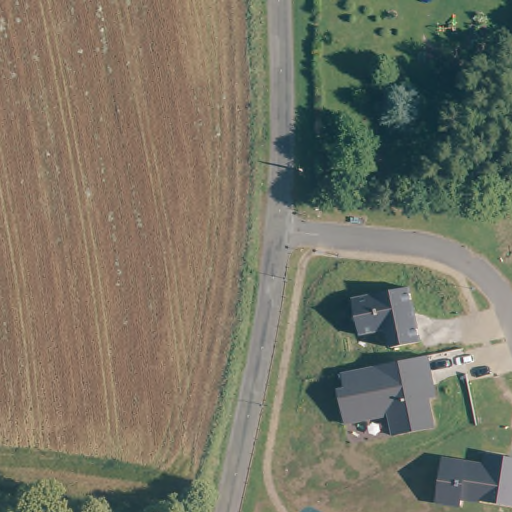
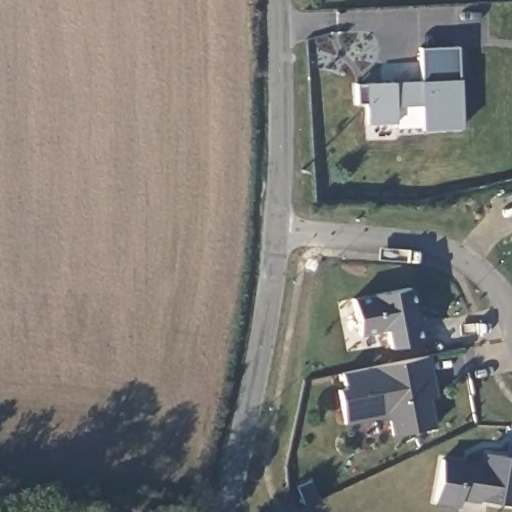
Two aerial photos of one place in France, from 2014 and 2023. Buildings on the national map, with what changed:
new [(460,80),(464,129),(421,129),(420,105),(396,106),(397,123),(367,124),(365,101),(358,102),(358,84),(422,81),(420,47),(457,46),(460,80)]
unchanged [(398,291),(410,345),(380,351),(376,333),(349,339),(342,303),(398,291)]
unchanged [(417,359),(424,400),(417,401),(423,430),(382,438),(378,417),(334,425),(327,392),(334,391),(331,375),(417,359)]
unchanged [(484,453),(512,458),(512,505),(461,499),(459,507),(433,503),(442,457),(482,463),(484,453)]

